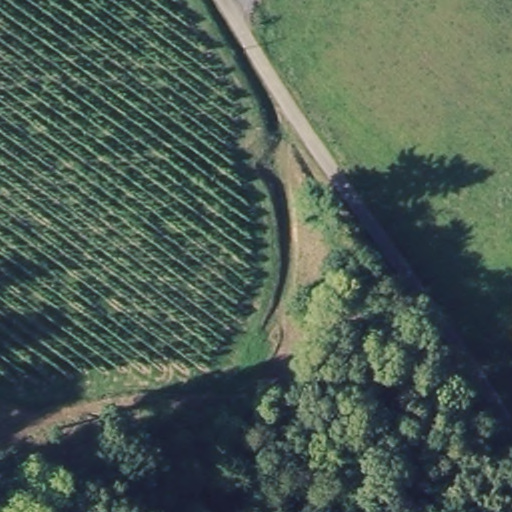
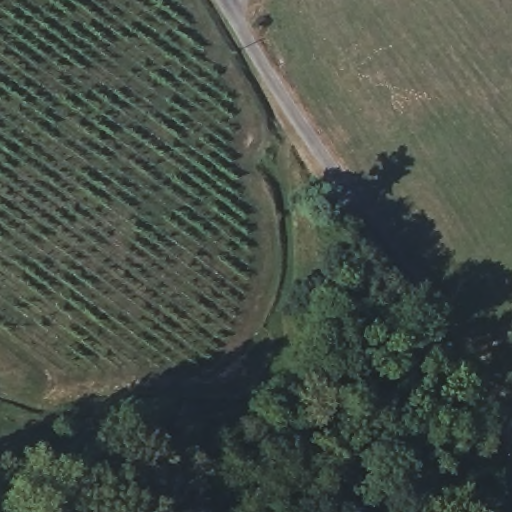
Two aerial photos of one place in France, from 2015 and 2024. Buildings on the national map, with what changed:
[]

